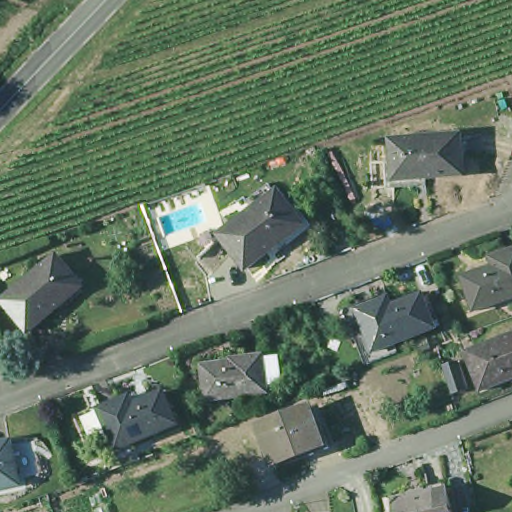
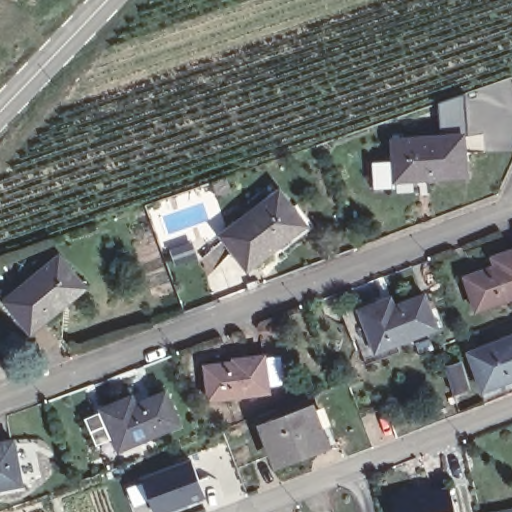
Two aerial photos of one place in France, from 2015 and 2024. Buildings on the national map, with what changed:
unchanged [(389,157),(397,156),(396,135),(467,132),(469,174),(431,175),(431,184),(390,185),(389,157)]
unchanged [(219,235),(276,192),(289,209),(294,205),(312,229),(275,255),(271,250),(245,269),(219,235)]
unchanged [(485,312),(472,277),(503,267),(500,258),(512,254),(512,302),(485,312)]
unchanged [(35,332),(9,301),(62,255),(89,286),(35,332)]
unchanged [(378,358),(357,302),(384,293),(385,298),(397,293),(401,302),(432,290),(445,325),(403,341),(406,347),(378,358)]
unchanged [(469,348),(512,332),(512,375),(483,386),(469,348)]
unchanged [(212,396),(208,361),(237,358),(237,355),(269,351),(269,355),(282,353),(286,378),(272,380),(273,389),(212,396)]
unchanged [(452,382),(446,360),(461,355),(468,378),(452,382)]
unchanged [(185,425),(124,452),(105,410),(124,401),(137,396),(140,405),(170,391),(185,425)]
unchanged [(311,451),(309,445),(277,458),(272,447),(264,425),(314,405),(322,427),(329,445),(311,451)]
unchanged [(0,489),(0,443),(13,440),(22,485),(0,489)]
new [(174,512),(152,512),(138,480),(189,460),(205,499),(174,512)]
unchanged [(400,496),(439,488),(452,485),(458,512),(402,512),(398,497),(400,496)]

